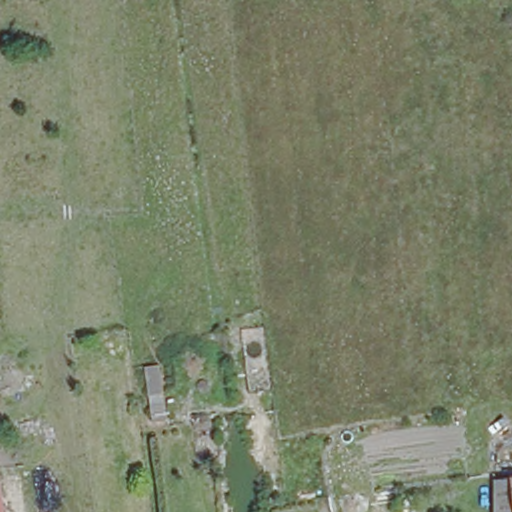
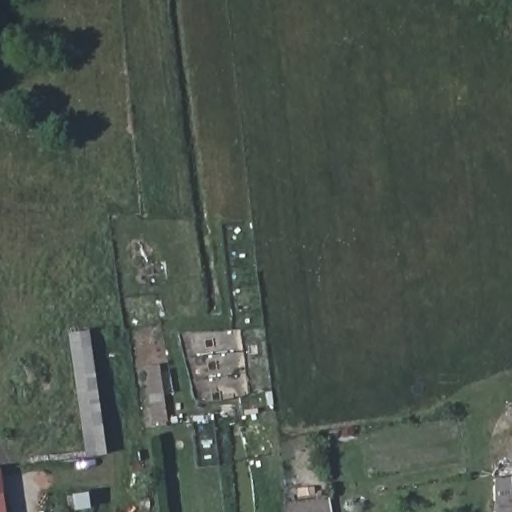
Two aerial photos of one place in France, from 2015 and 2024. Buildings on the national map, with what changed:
new [(85,457),(68,334),(87,331),(105,454),(85,457)]
new [(0,468),(4,494),(0,494),(0,468)]
unchanged [(510,512),(505,477),(512,476),(512,512),(510,512)]
unchanged [(510,512),(495,512),(490,479),(505,477),(510,512)]
unchanged [(0,512),(0,494),(4,494),(6,512),(0,512)]

